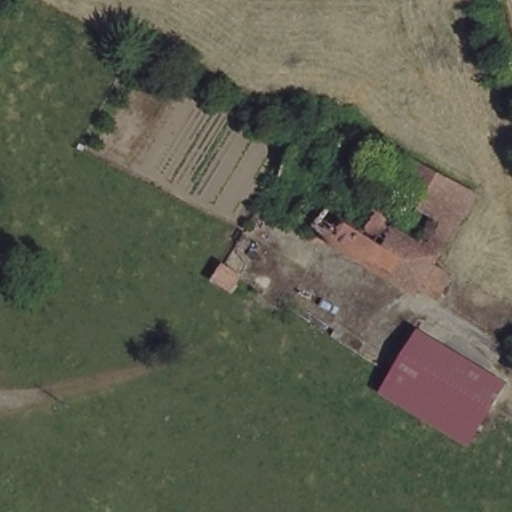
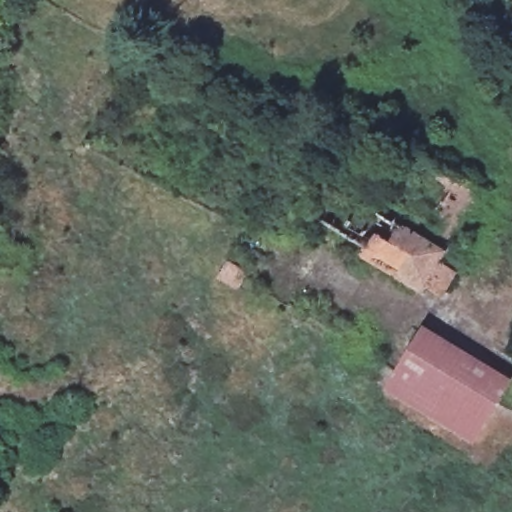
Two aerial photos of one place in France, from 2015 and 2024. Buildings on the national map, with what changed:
unchanged [(329,202),(359,216),(385,201),(399,209),(397,219),(413,227),(442,170),(479,190),(443,257),(458,270),(442,295),(425,286),(316,226),(329,202)]
unchanged [(238,273),(229,287),(216,280),(226,264),(238,273)]
unchanged [(388,388),(426,330),(474,358),(435,418),(388,388)]
unchanged [(512,380),(473,441),(435,418),(474,358),(512,380)]

